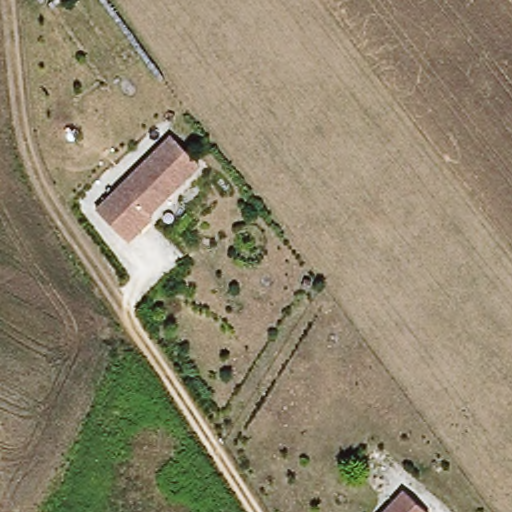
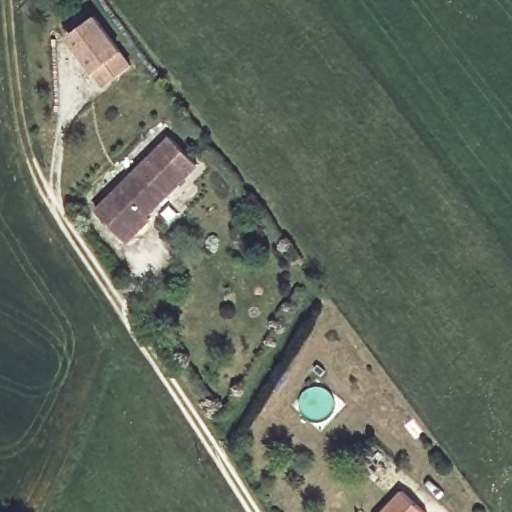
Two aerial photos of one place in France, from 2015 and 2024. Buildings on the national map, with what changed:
new [(106,87),(68,38),(96,15),(135,66),(106,87)]
unchanged [(156,215),(134,241),(101,213),(168,132),(198,157),(153,212),(156,215)]
unchanged [(394,482),(424,503),(418,512),(373,512),(394,482)]

